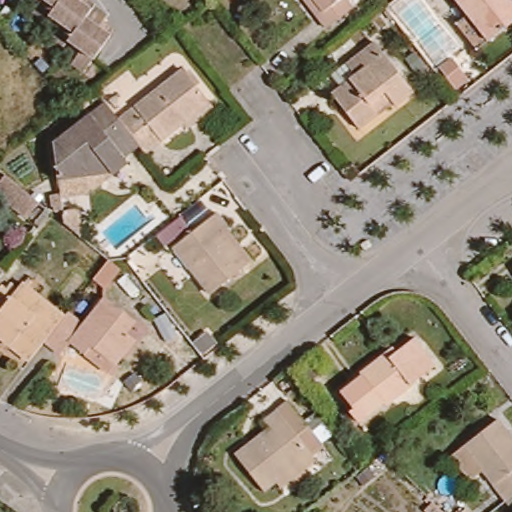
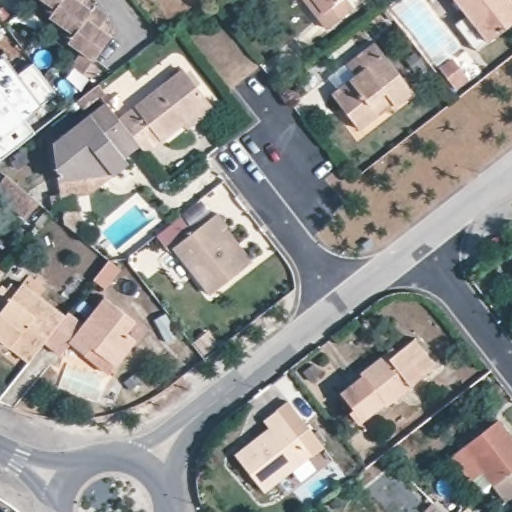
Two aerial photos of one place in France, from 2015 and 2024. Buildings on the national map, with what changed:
unchanged [(85,0),(93,6),(106,16),(101,23),(113,32),(109,36),(93,60),(83,74),(69,65),(79,50),(68,42),(63,48),(50,38),(60,24),(48,15),(44,21),(31,12),(40,0),(85,0)]
unchanged [(326,30),(317,18),(303,0),(345,0),(353,9),(326,30)]
unchanged [(473,15),(461,0),(512,0),(512,26),(493,41),(483,49),(462,23),(473,15)]
unchanged [(360,129),(333,94),(342,87),(334,75),(347,65),(376,43),(412,91),(397,104),(394,102),(377,115),(360,129)]
new [(33,62),(55,92),(24,118),(34,132),(0,158),(0,56),(3,53),(18,72),(33,62)]
new [(451,54),(470,80),(456,90),(437,66),(451,54)]
unchanged [(188,134),(183,127),(144,157),(138,149),(118,125),(182,74),(208,107),(213,114),(188,134)]
unchanged [(99,89),(104,97),(99,102),(84,115),(78,106),(93,94),(99,89)]
unchanged [(60,201),(58,186),(53,148),(104,107),(118,125),(138,149),(122,162),(126,167),(111,179),(89,197),(60,201)]
unchanged [(27,218),(0,195),(0,182),(6,174),(40,203),(27,218)]
unchanged [(64,223),(63,211),(79,208),(84,233),(78,235),(64,223)]
unchanged [(178,246),(220,213),(231,227),(258,261),(248,268),(214,294),(178,246)]
unchanged [(193,226),(168,245),(160,234),(184,214),(193,226)]
unchanged [(120,269),(106,288),(93,278),(108,259),(120,269)]
unchanged [(0,268),(1,269),(0,271),(0,268)]
unchanged [(0,290),(6,296),(21,279),(63,311),(44,336),(29,355),(11,341),(8,345),(0,340),(0,290)]
unchanged [(83,320),(104,293),(134,317),(126,328),(135,336),(109,368),(70,337),(61,349),(44,336),(63,311),(67,307),(83,320)]
unchanged [(439,366),(390,405),(387,401),(374,412),(355,388),(368,378),(366,374),(391,354),(399,347),(402,351),(418,339),(439,366)]
unchanged [(277,488),(273,482),(259,491),(231,453),(264,427),(259,419),(283,402),(318,447),(306,456),(311,461),(277,488)]
unchanged [(451,450),(464,441),(498,415),(512,433),(512,491),(504,497),(482,467),(471,476),(451,450)]
unchanged [(374,475),(367,481),(361,473),(369,468),(374,475)]
unchanged [(504,497),(512,491),(512,507),(504,497)]
unchanged [(442,512),(428,512),(426,509),(433,503),(442,512)]

